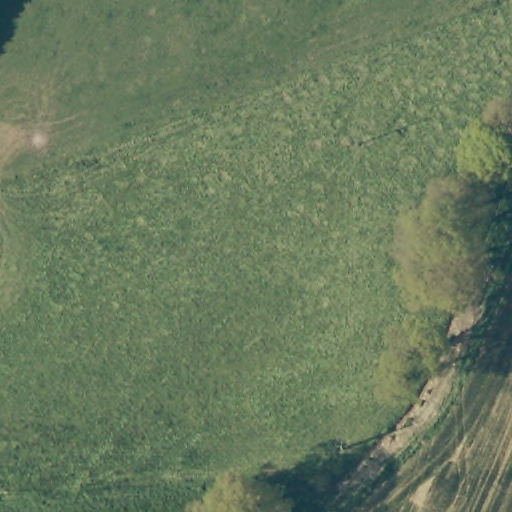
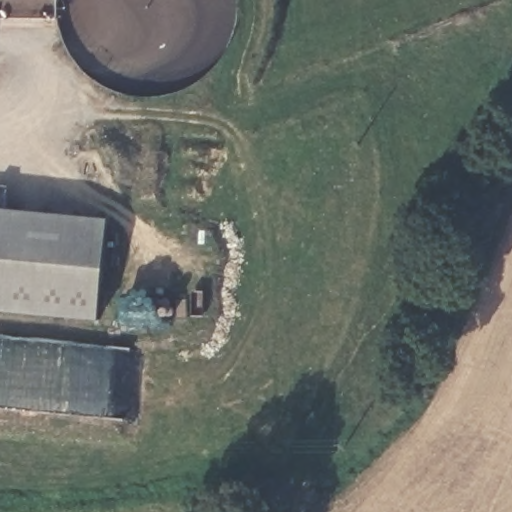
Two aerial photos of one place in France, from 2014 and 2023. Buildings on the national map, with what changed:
new [(97,322),(0,313),(0,210),(107,220),(97,322)]

